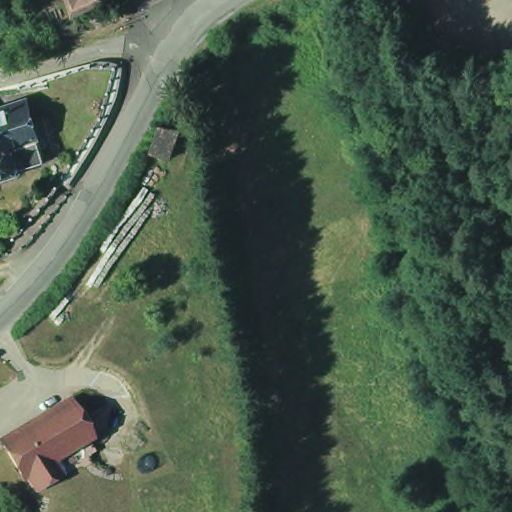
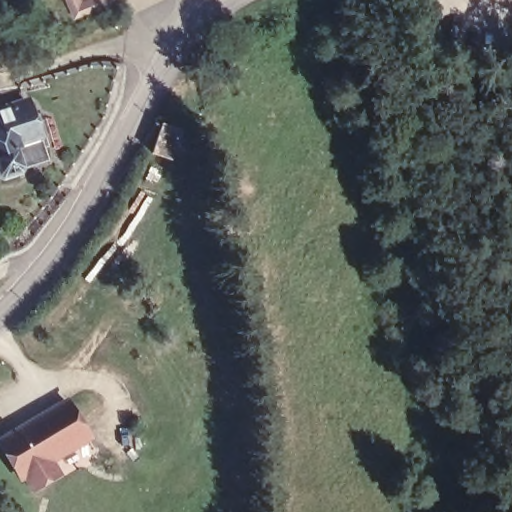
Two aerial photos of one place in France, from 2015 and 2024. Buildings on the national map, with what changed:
unchanged [(96,0),(71,11),(66,0),(96,0)]
unchanged [(30,158),(31,166),(10,172),(0,146),(0,96),(3,104),(35,92),(54,151),(30,158)]
unchanged [(153,172),(134,170),(137,144),(156,146),(153,172)]
unchanged [(90,432),(51,453),(60,470),(31,492),(0,440),(0,425),(66,388),(90,432)]

